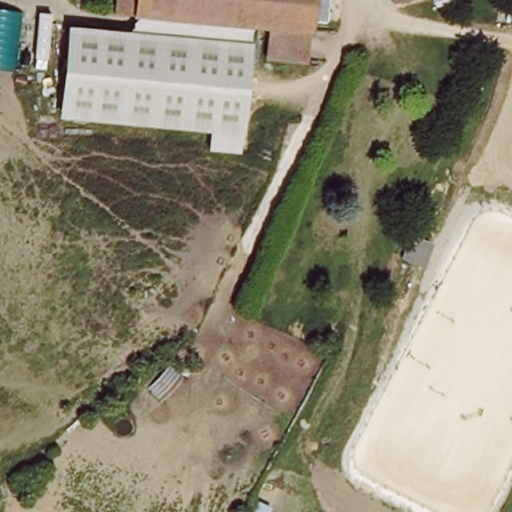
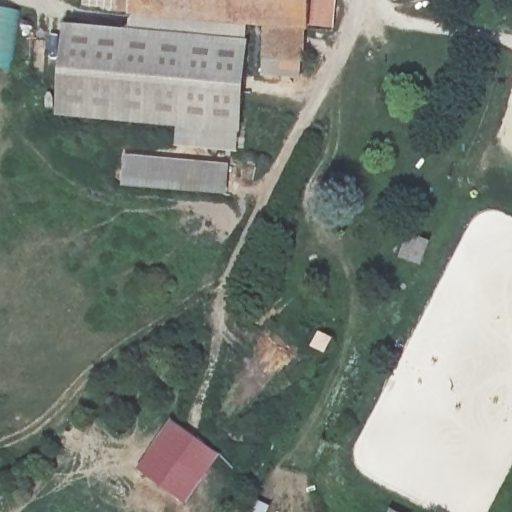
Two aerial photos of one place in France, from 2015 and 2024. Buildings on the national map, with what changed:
unchanged [(266,60),(266,28),(109,15),(110,0),(313,0),(307,64),(266,60)]
unchanged [(397,0),(403,0),(398,1),(397,0)]
new [(0,69),(0,9),(23,12),(15,71),(0,69)]
unchanged [(252,41),(245,135),(58,119),(67,26),(252,41)]
new [(232,166),(229,196),(124,189),(127,156),(232,166)]
new [(173,421),(224,458),(188,506),(138,469),(173,421)]

